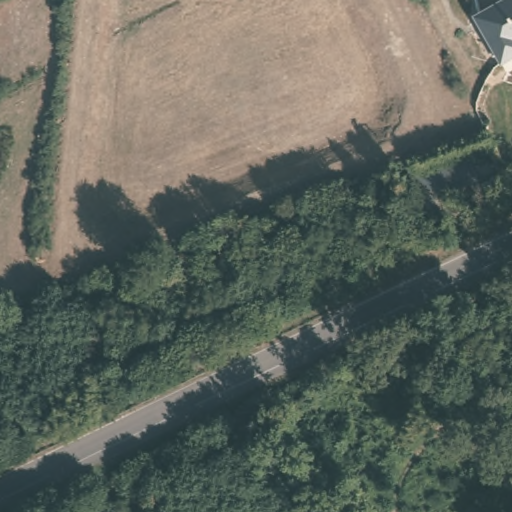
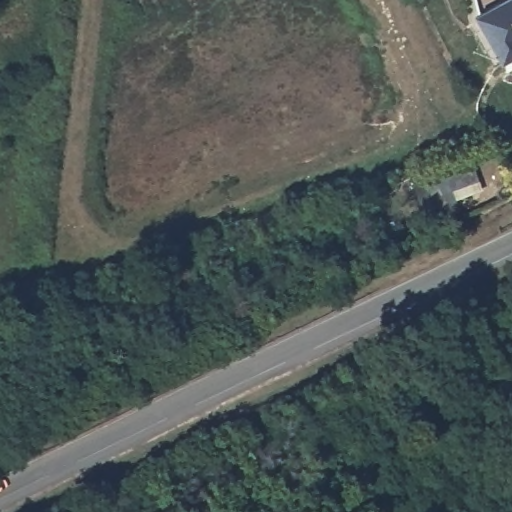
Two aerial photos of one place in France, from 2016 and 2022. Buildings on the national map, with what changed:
unchanged [(498,65),(473,17),(504,0),(512,0),(512,58),(498,65)]

